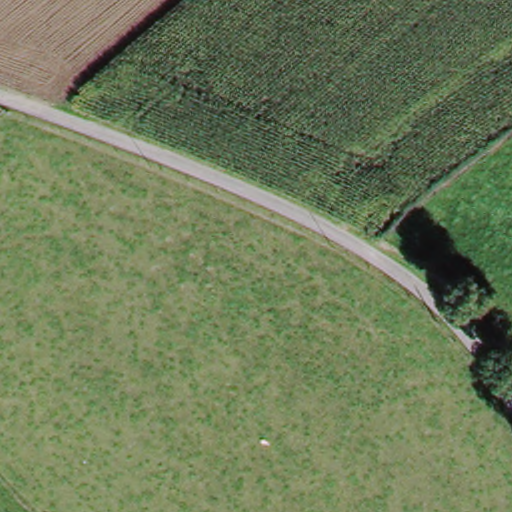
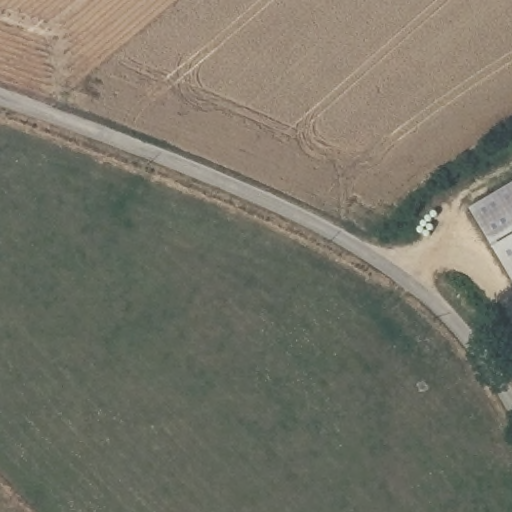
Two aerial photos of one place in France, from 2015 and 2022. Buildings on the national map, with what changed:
new [(512,192),(512,273),(507,276),(474,214),(512,192)]

